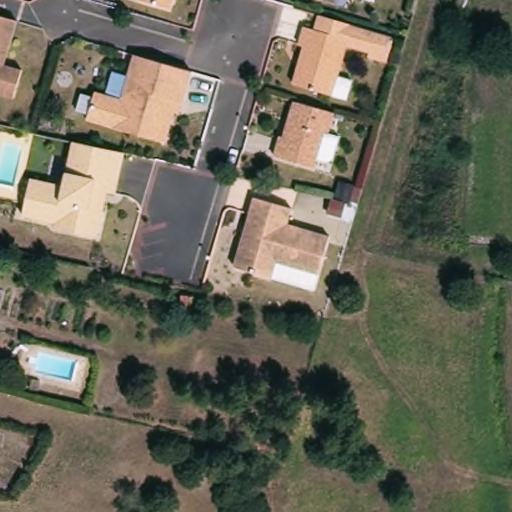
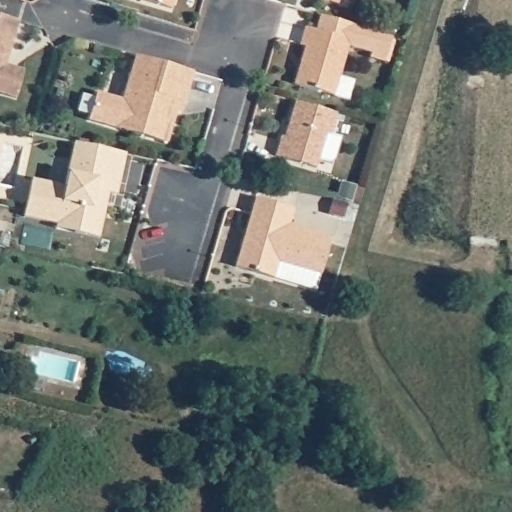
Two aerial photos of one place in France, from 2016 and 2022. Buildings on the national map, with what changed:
unchanged [(145,0),(177,0),(171,22),(141,13),(145,0)]
unchanged [(342,0),(341,3),(332,0),(342,0)]
unchanged [(23,20),(10,64),(27,69),(19,96),(0,91),(0,13),(23,20)]
unchanged [(320,28),(325,14),(396,35),(389,60),(374,56),(375,51),(352,44),(343,75),(357,80),(352,98),(298,82),(309,44),(304,43),(309,25),(320,28)]
unchanged [(188,101),(183,100),(171,141),(93,119),(101,91),(126,98),(135,68),(139,54),(156,58),(197,70),(188,101)]
unchanged [(334,111),(328,133),(343,138),(336,160),(331,163),(317,159),(315,166),(274,154),(280,135),(283,136),(294,100),(334,111)]
unchanged [(98,248),(74,243),(77,226),(58,222),(56,234),(24,227),(31,190),(64,197),(73,153),(125,163),(116,204),(108,203),(105,214),(98,248)]
unchanged [(340,194),(354,198),(350,211),(336,207),(340,194)]
unchanged [(293,219),(289,234),(331,246),(320,284),(278,272),(274,288),(235,277),(244,245),(251,224),(255,208),(293,219)]
unchanged [(332,211),(345,215),(342,228),(328,224),(332,211)]
unchanged [(33,393),(40,394),(39,400),(32,398),(33,393)]

